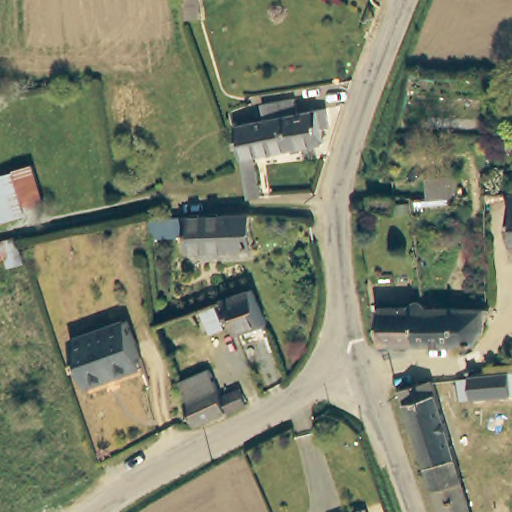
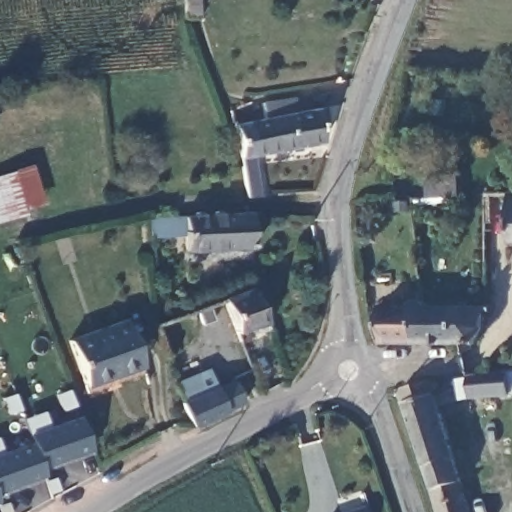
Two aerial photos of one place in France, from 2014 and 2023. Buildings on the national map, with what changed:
unchanged [(195,19),(185,20),(178,20),(178,0),(194,0),(195,19)]
unchanged [(241,133),(258,130),(255,116),(269,114),(268,107),(297,103),(301,118),(328,114),(333,132),(327,134),(329,147),(258,162),(262,205),(250,206),(243,167),(241,133)]
unchanged [(8,182),(36,175),(46,207),(18,216),(21,225),(0,232),(0,185),(8,182)]
unchanged [(419,181),(452,179),(454,199),(420,200),(419,181)]
unchanged [(154,222),(256,220),(256,253),(187,259),(186,240),(155,242),(154,222)]
unchanged [(225,300),(254,288),(264,316),(269,330),(241,341),(225,300)]
unchanged [(205,307),(214,303),(225,327),(208,334),(199,310),(205,307)]
unchanged [(382,346),(380,308),(419,308),(420,346),(382,346)]
unchanged [(482,333),(465,362),(461,345),(420,346),(419,308),(459,308),(484,308),(482,333)]
unchanged [(67,341),(125,320),(140,365),(144,374),(85,393),(83,387),(67,341)]
unchanged [(181,401),(185,400),(178,382),(208,369),(221,395),(241,387),(249,405),(235,413),(208,426),(196,431),(181,401)]
unchanged [(474,378),(512,374),(512,398),(467,404),(464,384),(464,380),(474,378)]
unchanged [(402,410),(399,395),(434,387),(438,402),(469,512),(438,512),(403,412),(402,410)]
new [(47,476),(0,493),(0,453),(30,442),(27,434),(78,415),(91,451),(45,467),(47,476)]
new [(1,505),(0,505),(0,502),(1,505)]
unchanged [(356,512),(350,512),(355,510),(356,512)]

